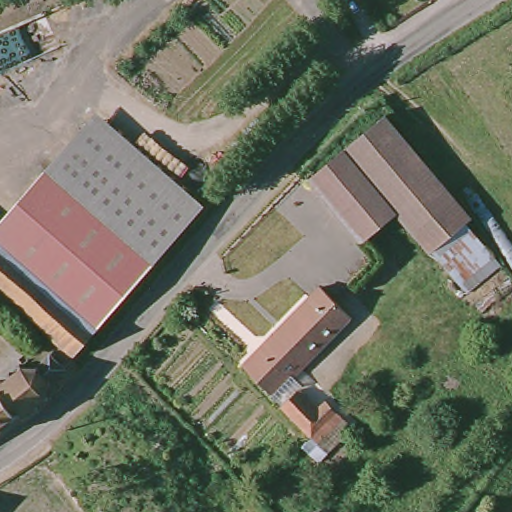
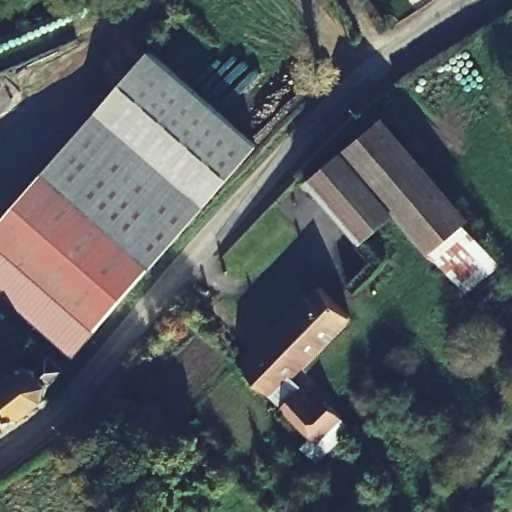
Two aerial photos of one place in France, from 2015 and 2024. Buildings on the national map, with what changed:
new [(152,51),(257,142),(203,205),(98,113),(152,51)]
unchanged [(54,169),(98,113),(203,205),(152,268),(54,169)]
unchanged [(465,294),(460,289),(429,253),(434,247),(400,208),(357,246),(304,185),(377,122),(492,256),(502,265),(465,294)]
unchanged [(54,169),(152,268),(94,334),(64,303),(95,273),(53,231),(60,225),(27,196),(54,169)]
unchanged [(53,231),(95,273),(64,303),(94,334),(72,359),(0,287),(0,224),(27,196),(60,225),(53,231)]
unchanged [(322,285),(350,315),(275,393),(264,383),(245,364),(322,285)]
new [(0,297),(0,287),(72,359),(0,297)]
unchanged [(8,376),(6,373),(10,370),(13,373),(21,368),(19,364),(24,361),(27,365),(42,356),(50,350),(54,355),(49,357),(53,363),(60,359),(64,363),(57,372),(52,379),(44,395),(47,399),(44,404),(40,401),(34,407),(37,411),(33,413),(31,411),(25,415),(27,418),(22,420),(20,417),(12,422),(10,420),(8,417),(0,422),(0,380),(0,381),(8,376)]
unchanged [(337,419),(338,420),(315,444),(309,438),(279,408),(295,393),(315,412),(324,404),(332,413),(337,419)]

